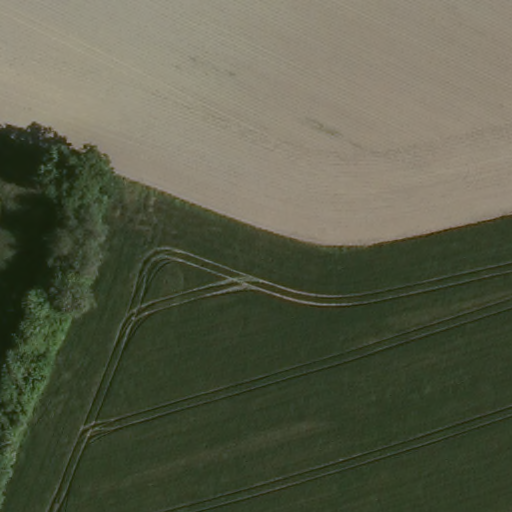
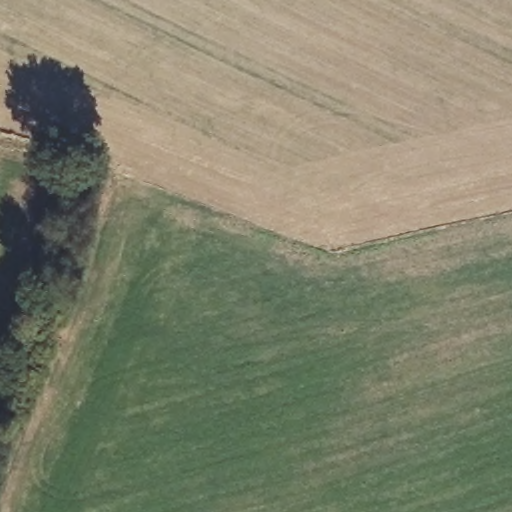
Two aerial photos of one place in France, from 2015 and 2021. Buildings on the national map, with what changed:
[]

